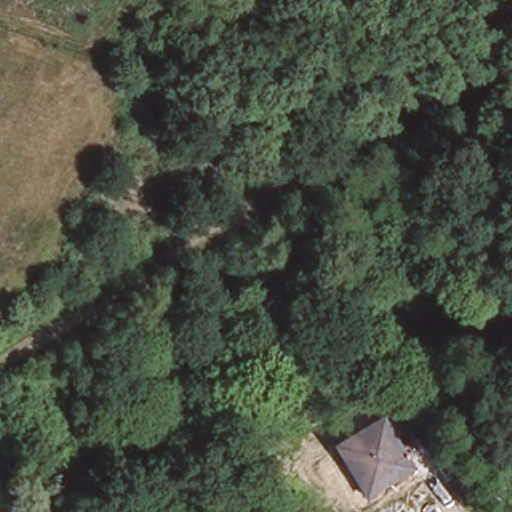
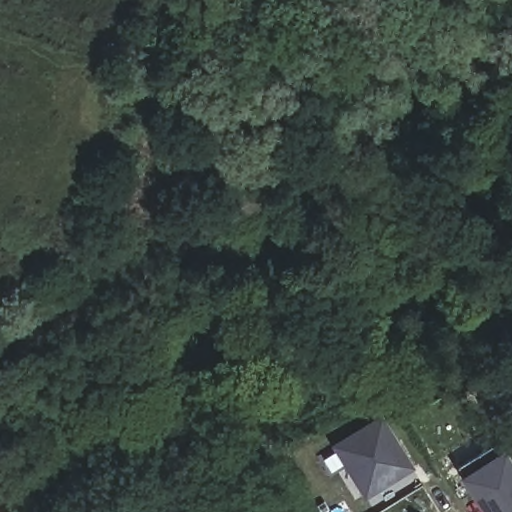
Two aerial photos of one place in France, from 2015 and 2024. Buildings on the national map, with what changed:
unchanged [(366,499),(333,446),(382,414),(415,468),(366,499)]
new [(463,477),(507,451),(512,459),(512,512),(486,512),(463,477)]

